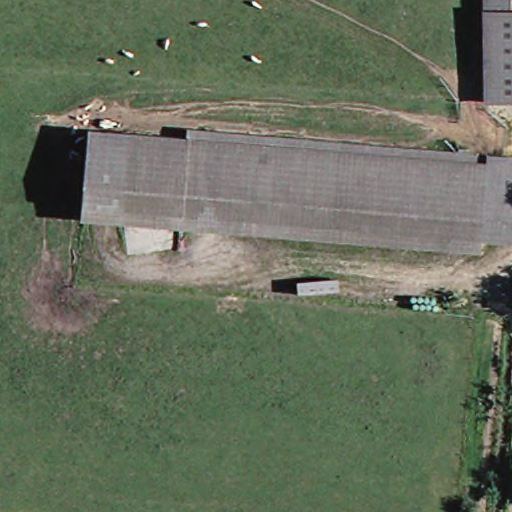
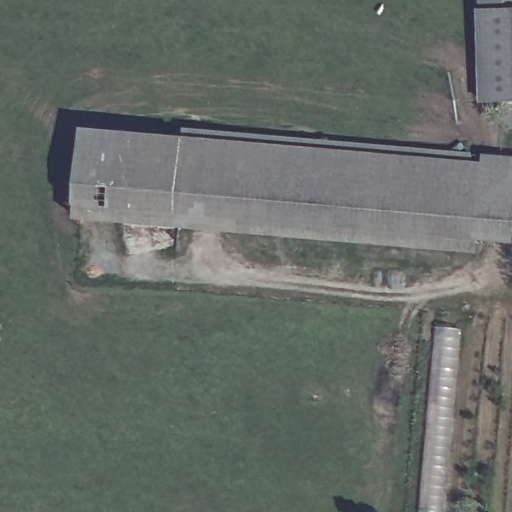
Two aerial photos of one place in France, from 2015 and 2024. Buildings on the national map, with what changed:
unchanged [(512,0),(512,101),(473,101),(474,85),(477,0),(512,0)]
unchanged [(70,224),(72,199),(77,135),(180,143),(181,136),(512,164),(512,247),(479,244),(478,258),(352,248),(70,224)]
new [(437,325),(460,327),(444,512),(419,512),(437,325)]

